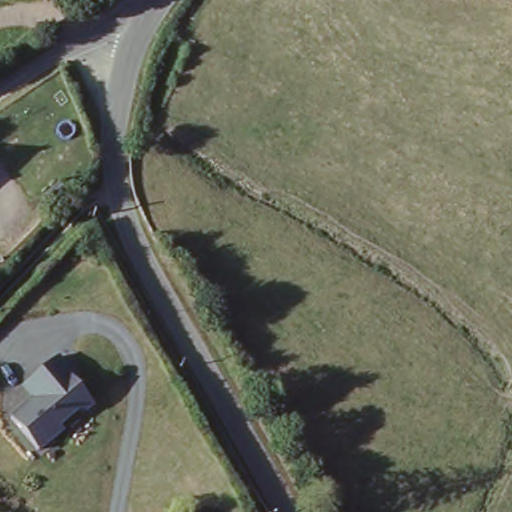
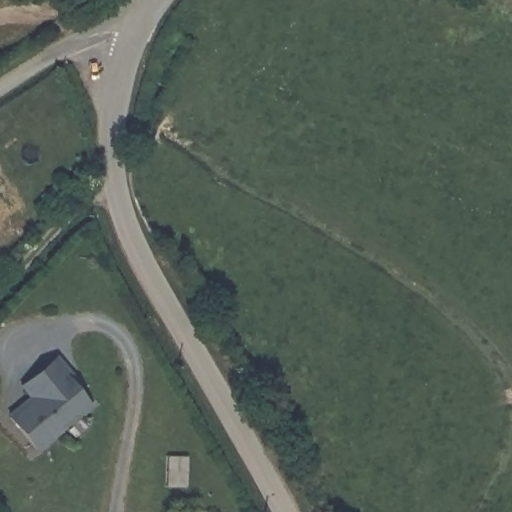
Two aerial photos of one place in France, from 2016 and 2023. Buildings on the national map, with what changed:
unchanged [(50,357),(74,383),(75,389),(90,405),(81,413),(74,413),(58,428),(61,432),(37,454),(6,421),(26,401),(16,389),(50,357)]

